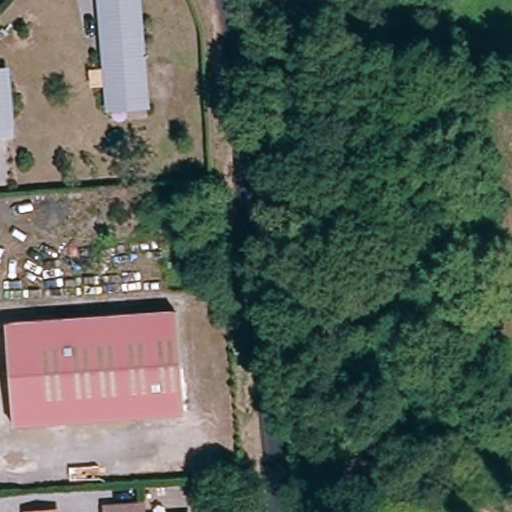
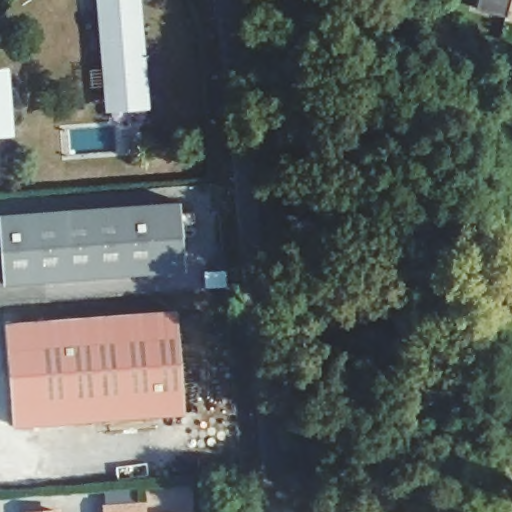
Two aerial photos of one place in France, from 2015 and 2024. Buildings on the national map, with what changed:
unchanged [(102,116),(101,110),(91,1),(97,0),(129,0),(139,107),(140,113),(102,116)]
new [(506,14),(476,6),(478,0),(510,0),(506,14)]
unchanged [(0,76),(1,76),(5,140),(0,140),(0,76)]
new [(184,268),(3,284),(0,232),(0,214),(180,201),(184,268)]
unchanged [(181,312),(182,332),(188,413),(16,426),(10,345),(9,326),(181,312)]
unchanged [(380,474),(379,496),(357,495),(358,473),(380,474)]
unchanged [(151,505),(151,512),(112,512),(111,508),(151,505)]

